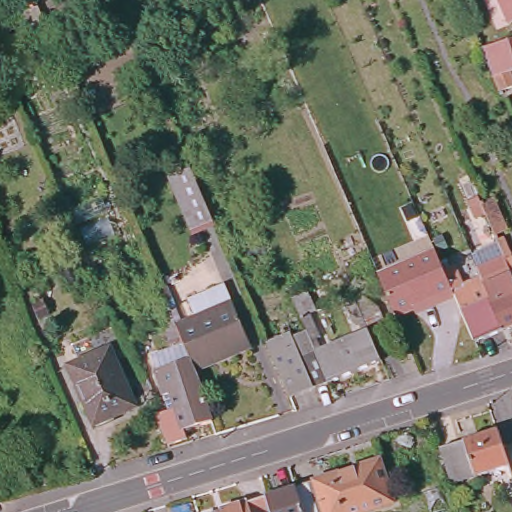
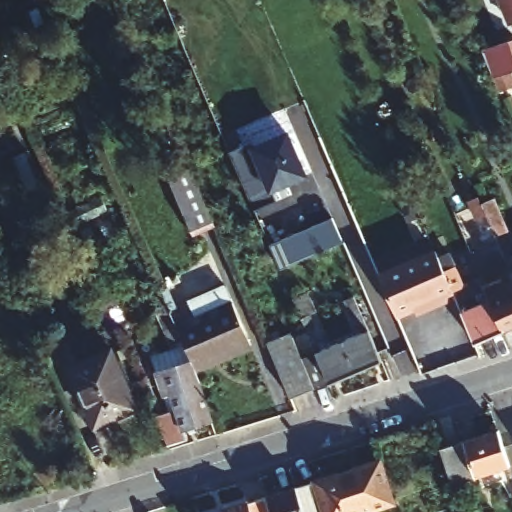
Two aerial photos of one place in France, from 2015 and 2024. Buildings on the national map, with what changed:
unchanged [(504,0),(512,0),(512,19),(504,0)]
unchanged [(492,84),(480,56),(512,45),(512,76),(492,84)]
new [(225,155),(248,145),(251,151),(284,136),(302,178),(268,192),(273,204),(251,213),(225,155)]
unchanged [(198,195),(212,228),(190,237),(167,185),(190,176),(198,195)]
unchanged [(482,207),(493,203),(507,235),(503,237),(505,244),(499,247),(482,207)]
new [(266,248),(330,221),(340,246),(276,273),(266,248)]
unchanged [(455,300),(438,307),(436,303),(395,320),(378,279),(435,255),(443,274),(455,300)]
unchanged [(490,304),(476,274),(505,262),(512,277),(512,330),(502,335),(490,304)]
unchanged [(455,300),(443,274),(455,270),(467,299),(464,300),(469,312),(490,304),(502,335),(475,346),(455,300)]
unchanged [(194,316),(187,299),(215,287),(223,284),(248,342),(193,365),(175,324),(194,316)]
unchanged [(289,328),(302,323),(297,311),(288,290),(303,284),(312,304),(306,306),(316,329),(307,333),(312,345),(338,334),(366,323),(380,354),(352,365),(325,376),(324,374),(310,380),(286,390),(263,335),(287,324),(289,328)]
unchanged [(383,324),(369,330),(366,323),(353,328),(342,299),(355,295),(358,304),(373,298),(383,324)]
unchanged [(166,303),(168,307),(175,324),(193,365),(200,380),(196,380),(208,413),(182,421),(185,431),(166,438),(165,434),(155,411),(173,404),(169,389),(163,390),(150,348),(167,342),(150,302),(163,297),(166,303)]
unchanged [(111,342),(136,401),(95,418),(70,359),(111,342)]
unchanged [(502,463),(444,481),(432,445),(490,426),(502,463)]
unchanged [(292,492),(288,481),(372,454),(386,497),(337,512),(299,512),(292,492)]
unchanged [(292,492),(299,512),(267,512),(261,492),(260,489),(288,481),(292,492)]
unchanged [(261,492),(267,512),(198,512),(261,492)]

